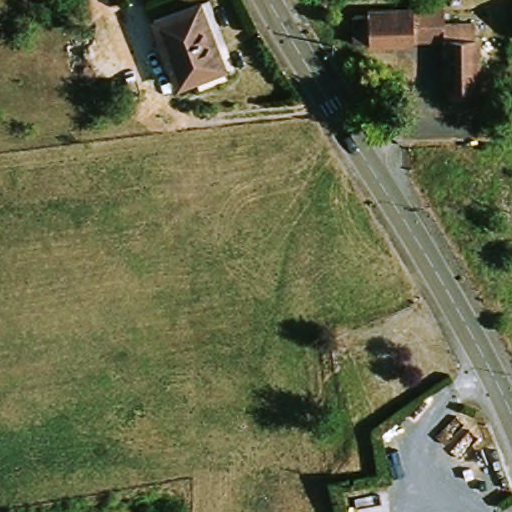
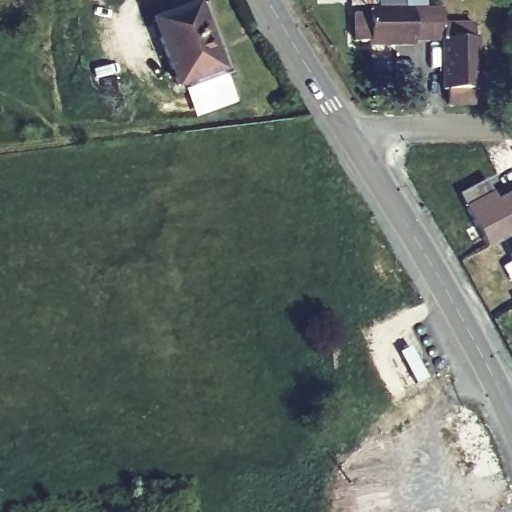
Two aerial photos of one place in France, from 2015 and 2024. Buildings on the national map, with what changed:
unchanged [(191,0),(218,65),(175,81),(150,16),(191,0)]
unchanged [(437,88),(434,88),(432,34),(404,34),(404,41),(383,42),(360,43),(359,35),(343,37),(343,12),(359,11),(359,4),(402,3),(431,1),(432,18),(463,16),(463,35),(471,35),(471,87),(467,87),(467,101),(438,101),(437,88)]
new [(509,250),(506,238),(488,247),(459,194),(487,180),(498,199),(512,192),(512,255),(509,250)]

